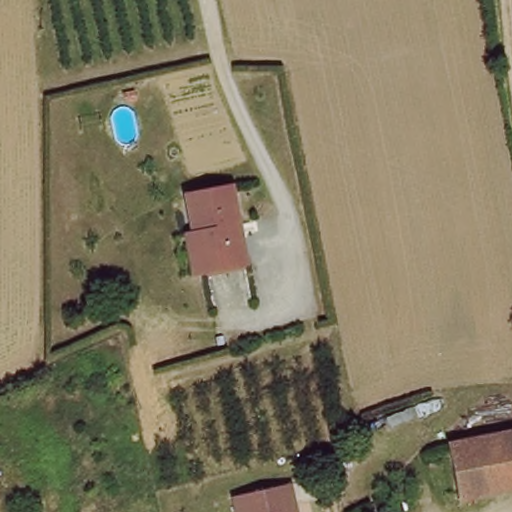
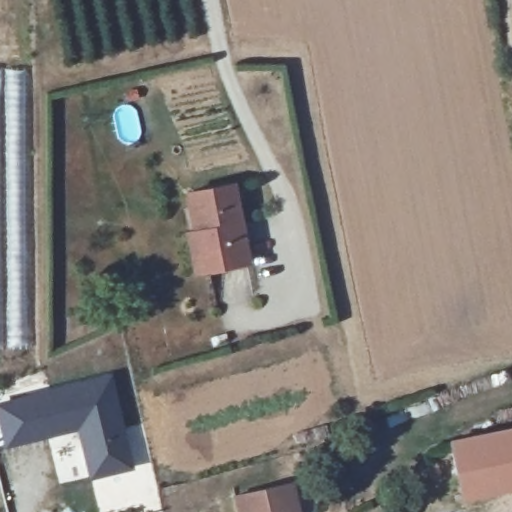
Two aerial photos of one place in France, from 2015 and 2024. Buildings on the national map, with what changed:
new [(25,351),(0,354),(0,70),(26,70),(25,351)]
unchanged [(178,235),(186,233),(178,195),(223,185),(239,262),(201,271),(186,274),(178,235)]
new [(133,471),(88,482),(77,432),(3,449),(0,433),(0,403),(111,375),(133,471)]
unchanged [(460,503),(448,445),(512,433),(512,491),(460,503)]
unchanged [(292,485),(296,507),(298,512),(239,512),(236,497),(292,485)]

